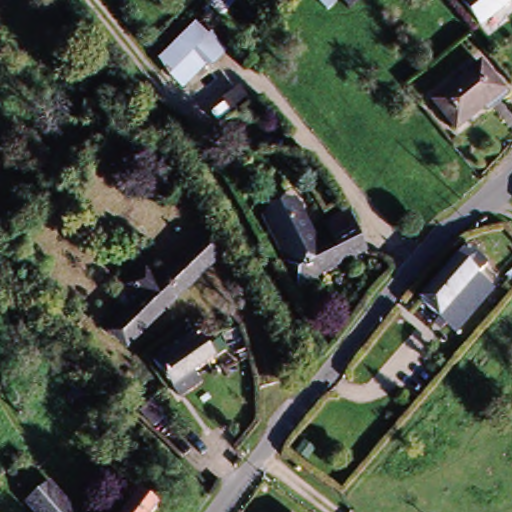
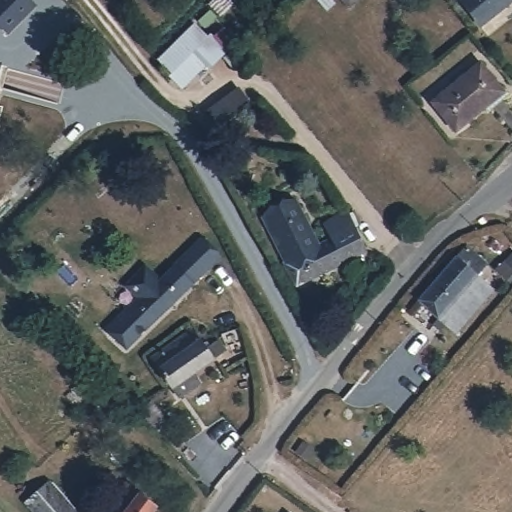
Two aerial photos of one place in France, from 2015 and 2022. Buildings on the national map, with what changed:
new [(29,0),(36,7),(8,34),(0,25),(0,0),(29,0)]
unchanged [(340,0),(354,0),(347,7),(340,0)]
unchanged [(461,0),(507,0),(476,22),(461,0)]
unchanged [(227,49),(179,89),(155,60),(200,18),(227,49)]
unchanged [(452,128),(429,100),(482,59),(503,87),(452,128)]
unchanged [(292,206),(312,250),(285,261),(278,245),(265,216),(275,212),(292,206)]
unchanged [(350,232),(358,256),(295,282),(285,261),(312,250),(328,242),(322,225),(343,216),(348,228),(350,232)]
unchanged [(108,330),(137,303),(125,292),(145,272),(155,282),(200,240),(225,262),(130,352),(108,330)]
unchanged [(470,252),(488,270),(477,280),(492,296),(452,336),(420,303),(470,252)]
unchanged [(217,351),(185,382),(164,361),(195,329),(217,351)]
unchanged [(78,512),(36,512),(31,507),(51,485),(78,512)]
unchanged [(159,503),(153,512),(126,512),(142,490),(159,503)]

